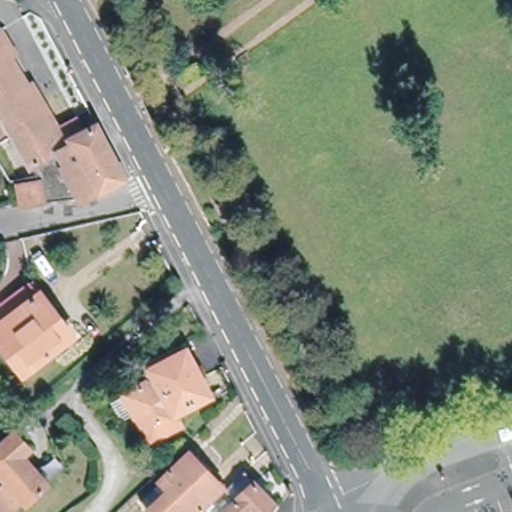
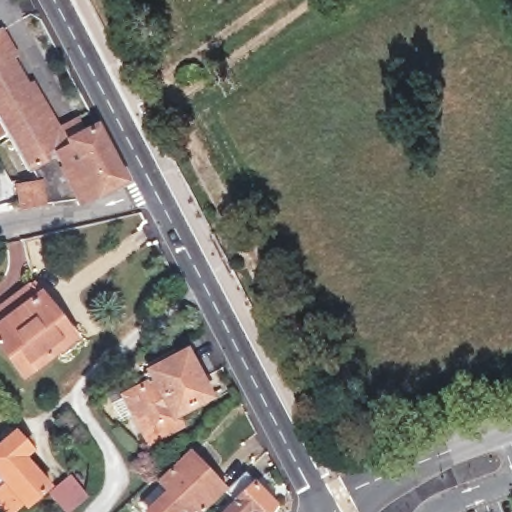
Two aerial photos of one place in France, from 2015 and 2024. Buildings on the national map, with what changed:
unchanged [(68,181),(57,159),(30,172),(12,142),(0,121),(0,30),(3,29),(19,56),(13,60),(28,85),(34,81),(61,126),(77,117),(85,130),(97,124),(128,181),(80,206),(76,200),(45,204),(21,207),(20,204),(18,186),(42,182),(43,190),(68,181)]
unchanged [(0,137),(0,127),(5,135),(0,137)]
unchanged [(25,376),(0,343),(0,309),(34,285),(74,338),(25,376)]
unchanged [(110,399),(111,395),(122,388),(148,375),(152,382),(157,380),(152,371),(186,352),(210,397),(177,415),(183,427),(151,443),(136,417),(123,424),(110,399)]
unchanged [(33,441),(21,451),(47,480),(28,497),(25,494),(11,507),(0,495),(0,480),(7,473),(0,466),(0,437),(16,422),(33,441)]
unchanged [(215,490),(191,512),(186,512),(180,506),(173,512),(146,512),(161,497),(168,505),(173,498),(158,483),(185,457),(215,490)]
unchanged [(232,502),(221,489),(239,472),(272,507),(269,512),(221,512),(232,502)]

